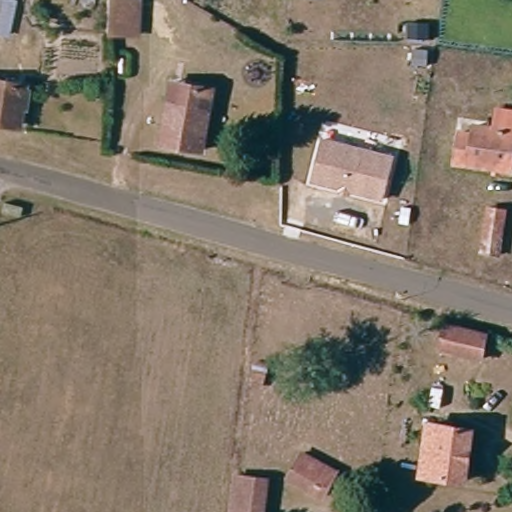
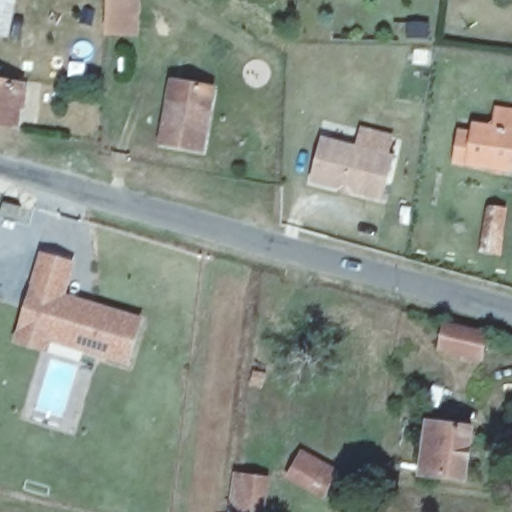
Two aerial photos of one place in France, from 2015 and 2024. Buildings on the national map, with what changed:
unchanged [(17,3),(7,35),(0,34),(0,0),(17,3)]
unchanged [(111,35),(112,0),(143,0),(141,36),(111,35)]
unchanged [(166,144),(170,106),(173,81),(188,82),(207,84),(204,111),(201,147),(166,144)]
unchanged [(23,88),(15,124),(0,122),(0,84),(23,88)]
unchanged [(459,132),(473,133),(475,124),(512,128),(512,161),(512,165),(456,160),(459,132)]
unchanged [(394,156),(382,202),(310,185),(322,139),(394,156)]
unchanged [(8,202),(4,216),(0,215),(0,200),(8,202)]
unchanged [(484,258),(490,210),(506,211),(500,260),(484,258)]
new [(77,261),(67,294),(146,315),(130,366),(53,343),(50,351),(14,342),(40,251),(77,261)]
unchanged [(483,336),(480,361),(442,357),(446,331),(483,336)]
unchanged [(437,422),(475,426),(468,479),(428,475),(437,422)]
unchanged [(322,496),(291,481),(305,453),(336,469),(322,496)]
unchanged [(265,478),(265,512),(237,512),(237,479),(265,478)]

